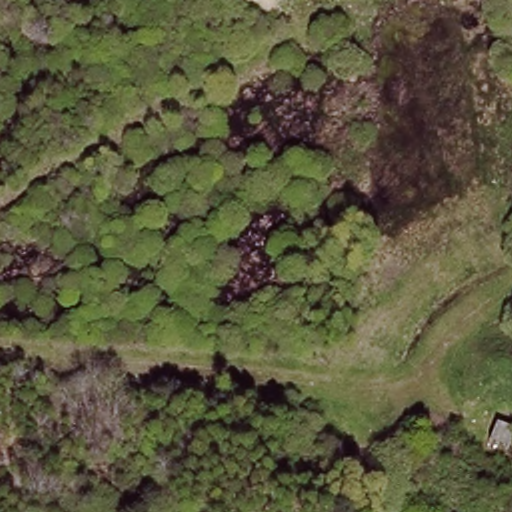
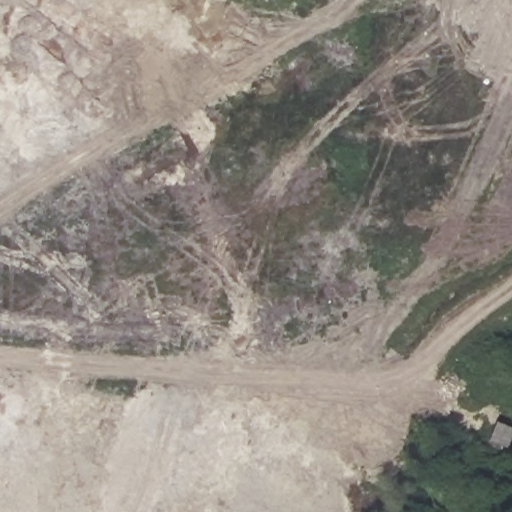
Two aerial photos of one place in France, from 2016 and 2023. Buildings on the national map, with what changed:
unchanged [(512,425),(512,449),(511,451),(486,444),(499,417),(512,425)]

